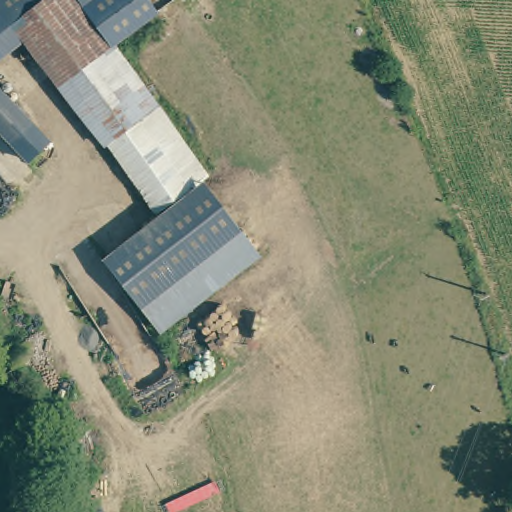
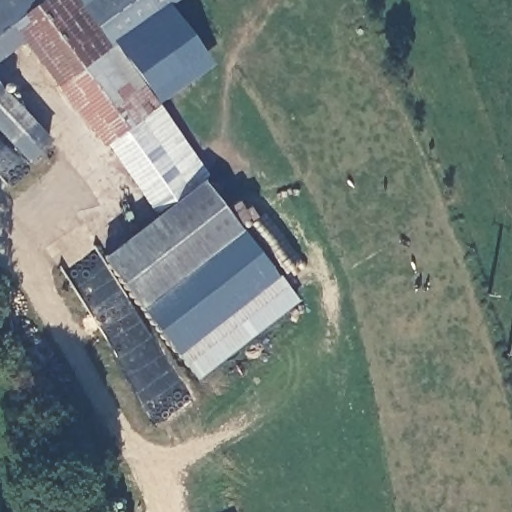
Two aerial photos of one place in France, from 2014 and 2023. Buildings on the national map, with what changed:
unchanged [(148,0),(157,12),(117,43),(209,175),(203,181),(260,255),(160,333),(101,258),(153,215),(143,195),(105,144),(102,146),(22,41),(0,58),(0,0),(148,0)]
new [(213,65),(160,105),(117,43),(157,12),(148,0),(178,0),(169,5),(213,65)]
unchanged [(27,161),(0,134),(0,85),(50,140),(27,161)]
new [(260,255),(298,302),(195,381),(160,333),(260,255)]

